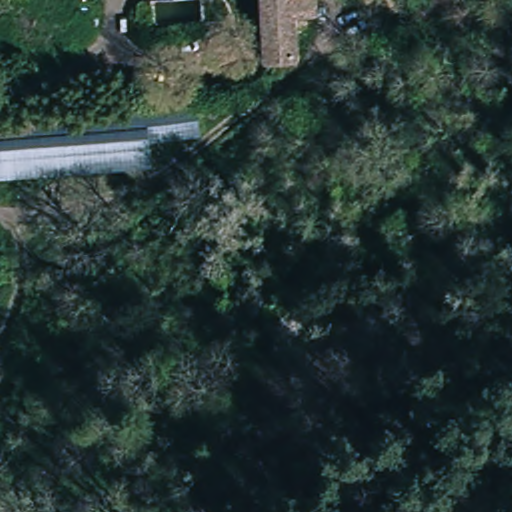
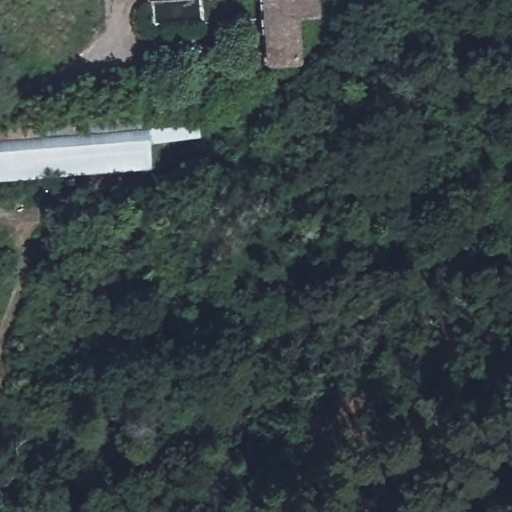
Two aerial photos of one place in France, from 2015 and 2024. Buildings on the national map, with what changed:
unchanged [(320,0),(320,20),(299,19),(298,65),(270,65),(268,0),(320,0)]
unchanged [(198,119),(200,145),(167,171),(148,173),(147,120),(198,119)]
unchanged [(0,125),(147,120),(148,173),(0,183),(0,125)]

